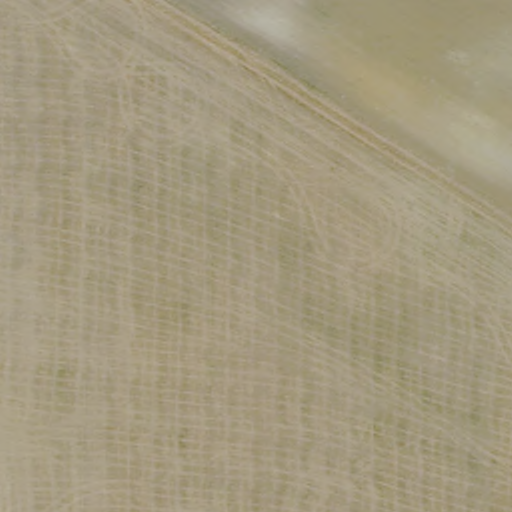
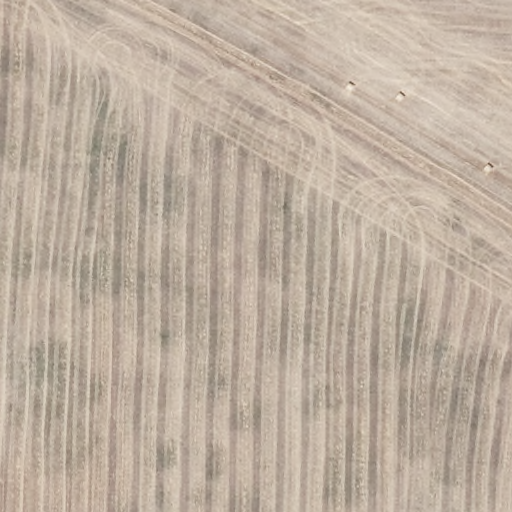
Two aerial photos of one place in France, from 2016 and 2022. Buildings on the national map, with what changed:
[]

